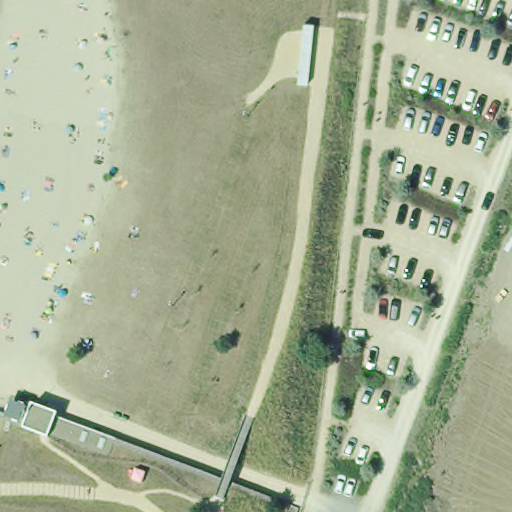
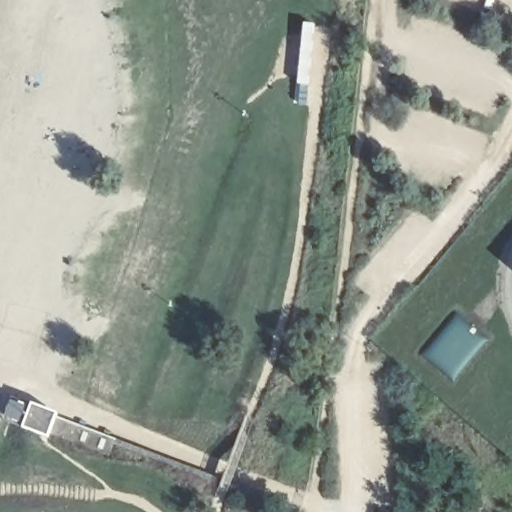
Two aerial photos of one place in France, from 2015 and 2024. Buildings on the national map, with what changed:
unchanged [(32,407),(34,405),(60,414),(50,437),(25,428),(27,425),(5,416),(12,400),(32,407)]

